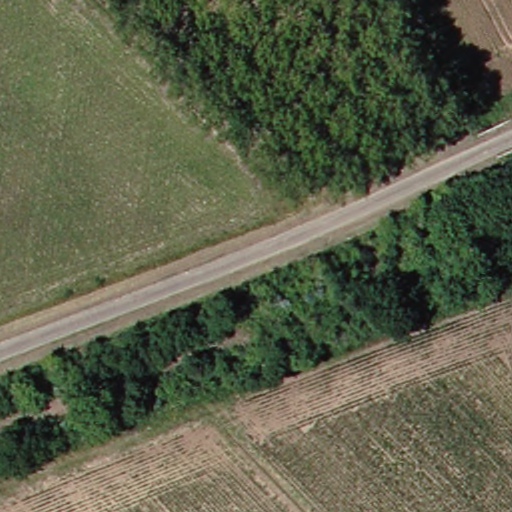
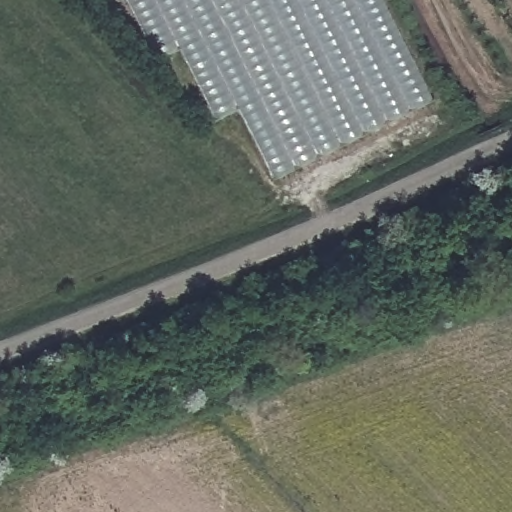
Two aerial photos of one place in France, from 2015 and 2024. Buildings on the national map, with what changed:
new [(429,101),(271,181),(235,110),(212,121),(212,120),(176,50),(153,61),(122,0),(379,0),(429,101)]

